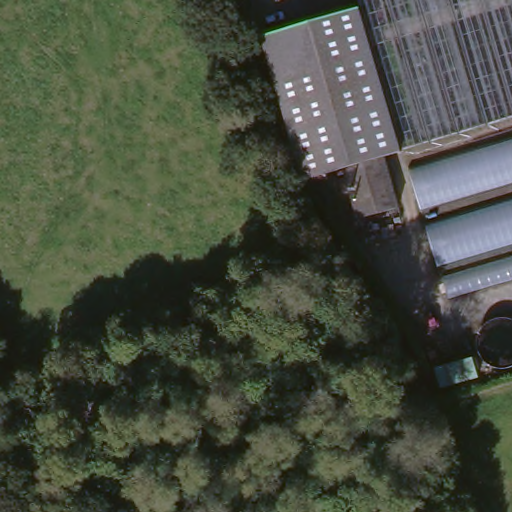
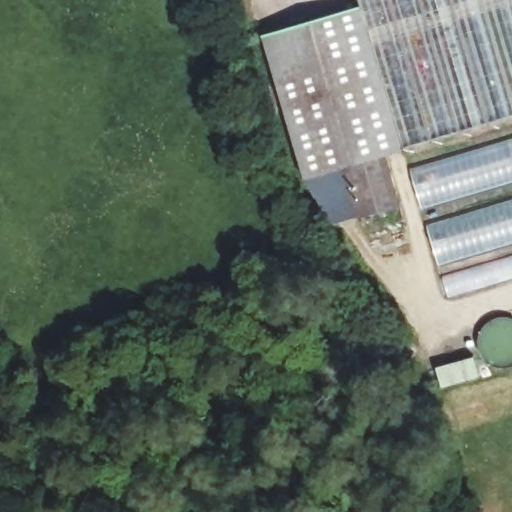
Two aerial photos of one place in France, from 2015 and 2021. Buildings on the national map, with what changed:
unchanged [(512,0),(512,126),(396,159),(356,14),(352,0),(512,0)]
unchanged [(375,165),(387,215),(346,227),(332,177),(300,185),(258,41),(356,14),(396,159),(375,165)]
unchanged [(512,145),(512,283),(445,302),(408,177),(512,145)]
unchanged [(481,333),(486,327),(494,326),(503,327),(512,329),(512,369),(506,371),(492,369),(483,363),(477,352),(477,342),(481,333)]
unchanged [(478,386),(437,395),(431,383),(446,378),(444,373),(470,365),(478,386)]

